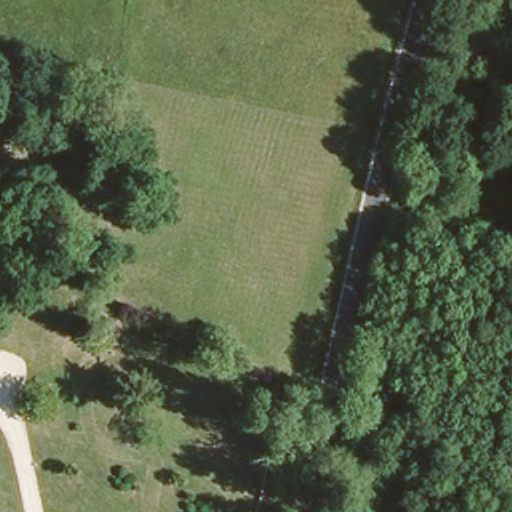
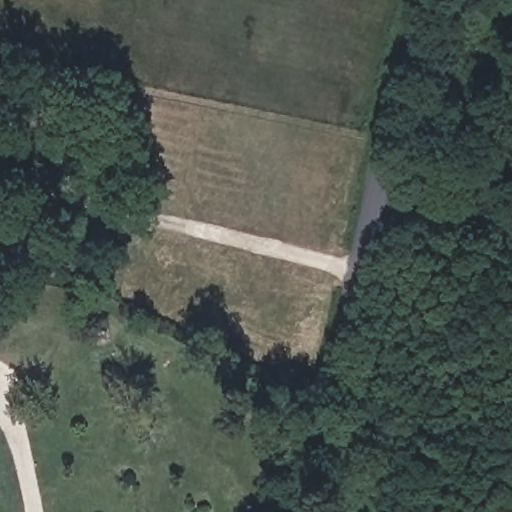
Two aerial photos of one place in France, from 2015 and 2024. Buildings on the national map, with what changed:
unchanged [(207,368),(208,380),(192,380),(192,369),(207,368)]

